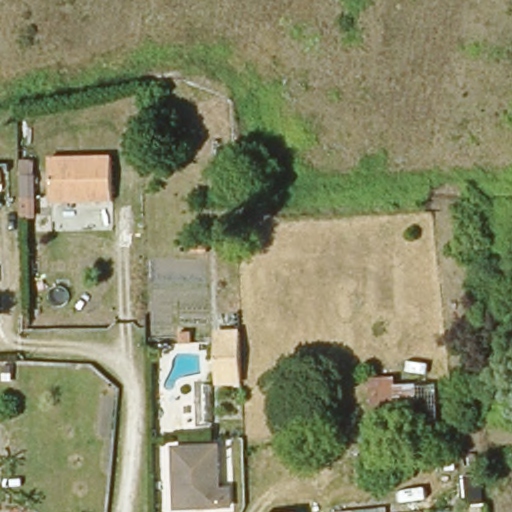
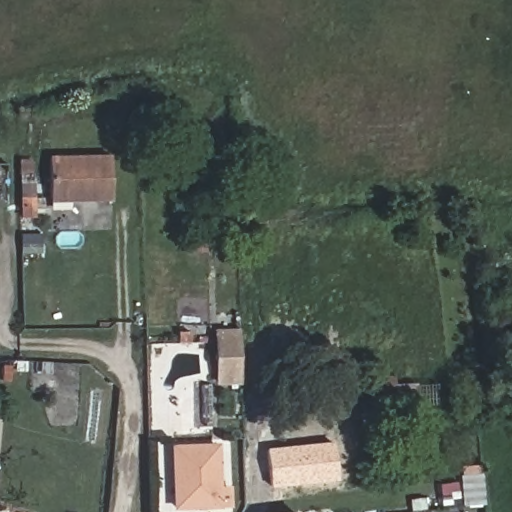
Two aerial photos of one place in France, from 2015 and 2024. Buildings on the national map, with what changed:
unchanged [(52,206),(51,199),(50,159),(110,157),(111,201),(81,201),(81,205),(52,206)]
unchanged [(21,223),(20,161),(35,160),(37,221),(21,223)]
unchanged [(240,381),(240,384),(217,386),(215,336),(237,335),(240,381)]
unchanged [(419,416),(434,414),(434,428),(371,429),(369,377),(396,376),(397,385),(418,384),(419,416)]
new [(271,487),(267,449),(334,442),(338,480),(271,487)]
unchanged [(217,443),(219,485),(229,484),(230,504),(176,505),(174,444),(217,443)]

